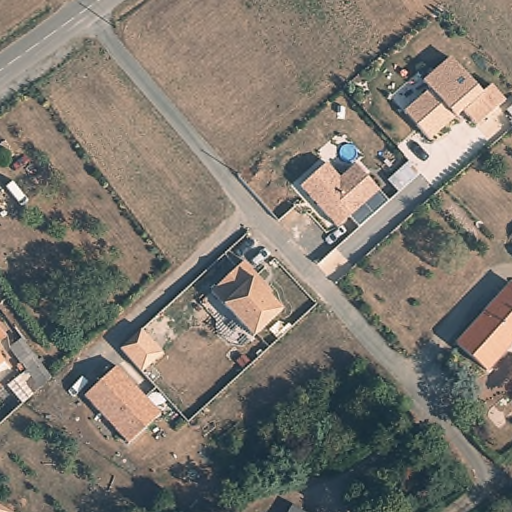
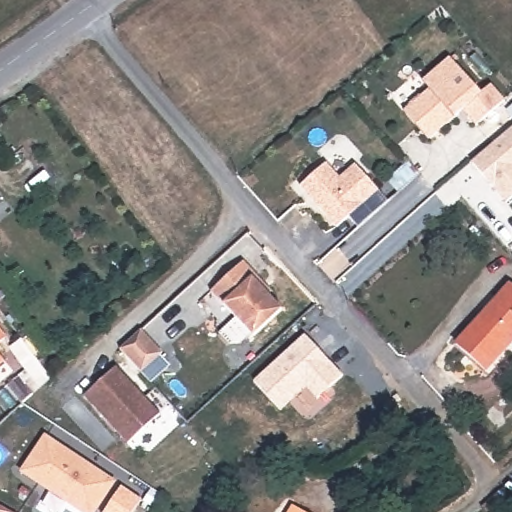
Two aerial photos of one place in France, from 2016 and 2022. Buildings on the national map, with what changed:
unchanged [(463,111),(429,141),(404,112),(430,89),(423,82),(449,59),(480,94),(491,85),(504,101),(476,126),(463,111)]
new [(512,126),(512,198),(507,203),(471,162),(512,126)]
unchanged [(326,163),(340,178),(356,164),(379,190),(337,227),(300,187),(326,163)]
unchanged [(0,196),(0,193),(1,195),(0,196)]
unchanged [(211,291),(243,261),(257,276),(253,279),(282,310),(253,337),(211,291)]
unchanged [(510,285),(512,287),(512,343),(487,372),(457,345),(510,285)]
new [(141,328),(164,352),(161,355),(171,364),(153,383),(120,348),(141,328)]
unchanged [(0,342),(0,329),(6,337),(0,342)]
new [(305,334),(345,376),(319,400),(307,387),(281,411),(254,382),(305,334)]
unchanged [(40,389),(10,348),(21,339),(51,378),(40,389)]
unchanged [(0,364),(0,356),(4,361),(0,364)]
unchanged [(160,415),(128,444),(85,397),(116,367),(160,415)]
unchanged [(17,377),(34,395),(24,404),(7,386),(17,377)]
new [(118,480),(97,512),(81,512),(20,472),(45,433),(118,480)]
new [(0,512),(0,504),(14,512),(0,512)]
unchanged [(302,512),(292,512),(295,508),(302,512)]

